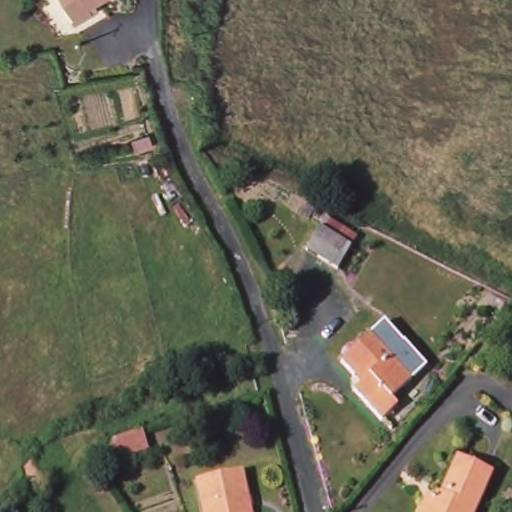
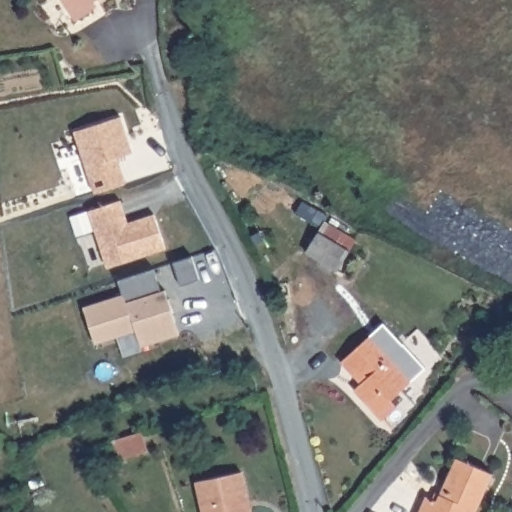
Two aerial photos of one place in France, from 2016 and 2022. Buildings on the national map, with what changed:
unchanged [(73,14),(65,0),(99,0),(73,14)]
new [(119,115),(130,151),(116,156),(124,182),(93,192),(73,130),(119,115)]
new [(122,198),(129,221),(156,212),(168,247),(109,266),(90,209),(122,198)]
unchanged [(307,250),(320,232),(328,221),(357,245),(349,256),(335,274),(307,250)]
new [(117,279),(153,267),(159,287),(163,286),(178,330),(140,345),(134,329),(94,342),(82,306),(121,293),(117,279)]
unchanged [(394,402),(380,414),(364,396),(371,389),(361,378),(343,358),(369,332),(411,378),(394,392),(399,396),(394,402)]
new [(141,433),(147,452),(121,461),(114,441),(141,433)]
unchanged [(496,479),(480,512),(421,512),(427,498),(439,504),(444,494),(460,461),(496,479)]
unchanged [(245,465),(256,512),(209,512),(200,475),(245,465)]

